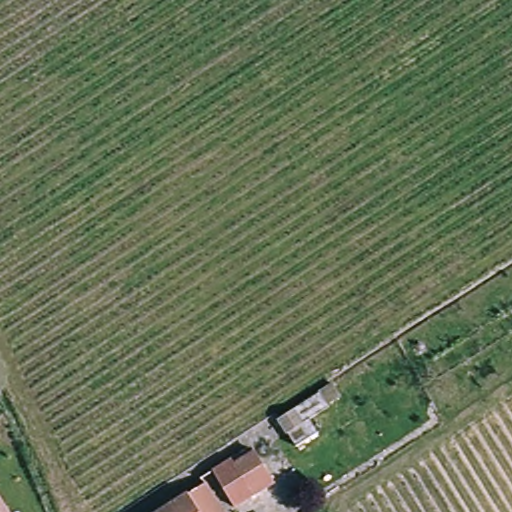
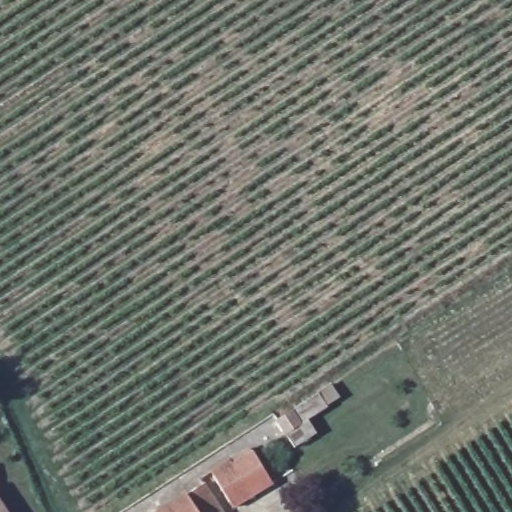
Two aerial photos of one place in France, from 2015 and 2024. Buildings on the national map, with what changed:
unchanged [(311,424),(299,432),(288,416),(301,407),(311,424)]
unchanged [(240,507),(216,469),(233,455),(238,464),(257,451),(278,482),(240,507)]
unchanged [(192,496),(206,487),(222,512),(166,512),(192,496)]
unchanged [(0,494),(14,512),(0,512),(0,494)]

